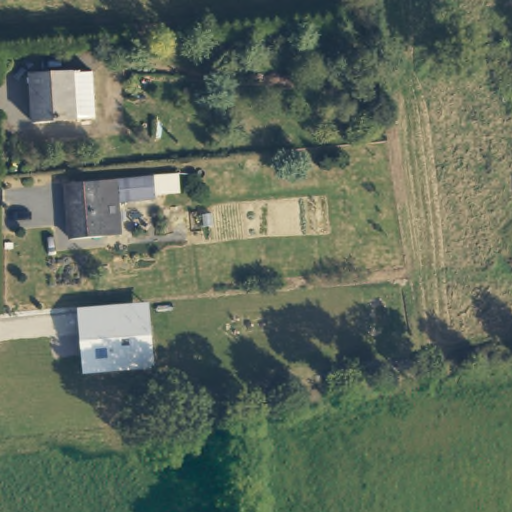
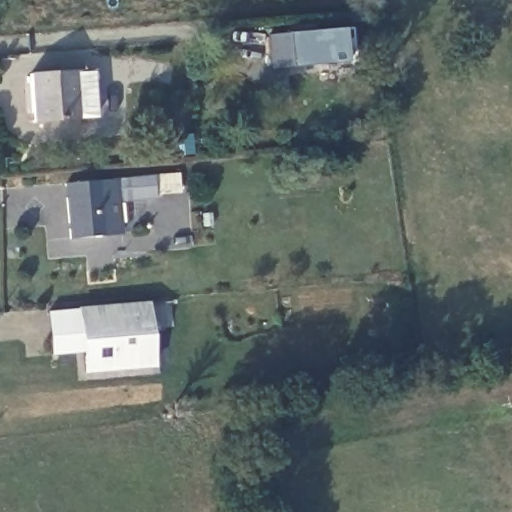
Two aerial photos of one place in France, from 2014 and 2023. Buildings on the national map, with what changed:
new [(270,35),(287,33),(343,28),(355,27),(358,61),(345,63),(290,67),(271,69),(270,35)]
unchanged [(96,115),(74,117),(34,121),(30,74),(70,70),(91,68),(96,115)]
unchanged [(113,200),(116,234),(66,239),(61,185),(151,175),(153,195),(113,200)]
unchanged [(76,308),(147,303),(154,368),(83,374),(76,308)]

